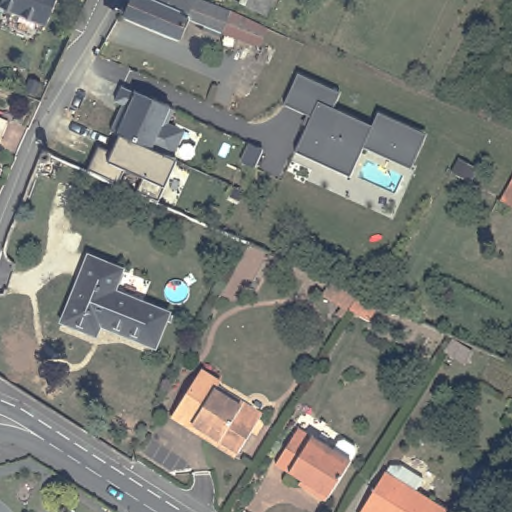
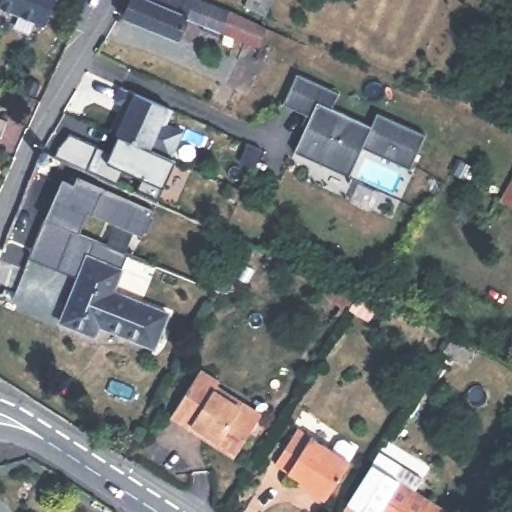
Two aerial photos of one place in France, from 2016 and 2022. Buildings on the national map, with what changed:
unchanged [(50,16),(44,30),(0,12),(0,0),(57,0),(50,16)]
unchanged [(268,27),(276,30),(270,46),(268,50),(192,18),(185,38),(180,39),(129,18),(131,13),(136,0),(203,0),(268,27)]
unchanged [(249,7),(249,5),(243,3),(244,0),(277,0),(270,16),(249,7)]
unchanged [(340,94),(334,108),(371,125),(377,114),(425,136),(410,168),(363,147),(350,177),(293,152),(310,116),(285,105),(298,77),(340,94)]
unchanged [(122,137),(110,132),(119,113),(125,116),(129,108),(115,102),(121,87),(173,110),(167,124),(184,132),(171,159),(142,146),(122,137)]
unchanged [(7,120),(0,138),(0,118),(7,120)]
unchanged [(142,146),(171,159),(176,161),(175,163),(157,202),(135,193),(142,178),(124,170),(117,184),(91,173),(87,170),(97,147),(115,154),(121,138),(122,137),(142,146)]
unchanged [(261,149),(262,150),(255,168),(240,162),(249,144),(261,149)]
unchanged [(47,156),(47,157),(47,158),(46,158),(46,159),(45,159),(44,160),(43,160),(42,159),(41,159),(40,159),(40,158),(40,157),(39,156),(39,154),(40,151),(41,151),(42,150),(43,150),(46,152),(46,153),(47,153),(47,154),(47,155),(47,156)]
new [(62,179),(74,184),(76,177),(154,212),(151,217),(154,218),(146,234),(144,233),(142,237),(88,213),(79,233),(45,218),(62,179)]
unchanged [(512,194),(512,206),(506,203),(512,194)]
new [(95,239),(81,278),(27,258),(45,218),(95,239)]
unchanged [(126,266),(117,288),(174,311),(163,337),(106,315),(101,331),(66,317),(91,252),(126,266)]
unchanged [(368,316),(348,303),(345,308),(327,296),(337,281),(357,290),(355,293),(375,306),(368,316)]
unchanged [(445,350),(452,339),(472,352),(465,363),(445,350)]
unchanged [(172,418),(205,372),(225,386),(222,389),(247,406),(265,418),(239,455),(235,461),(193,432),(172,418)]
unchanged [(298,427),(350,457),(327,496),(309,486),(311,482),(277,462),(298,427)]
unchanged [(452,512),(365,512),(392,472),(452,512)]

